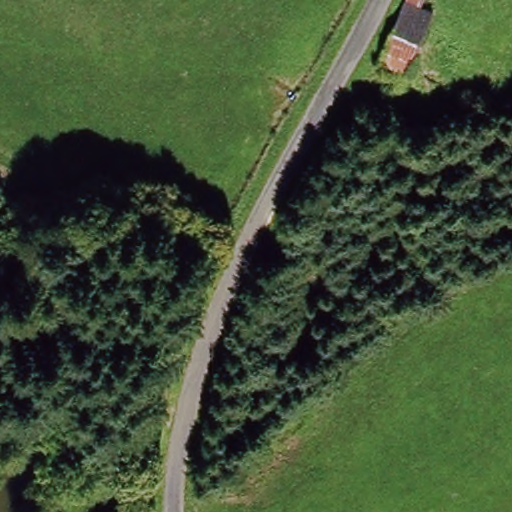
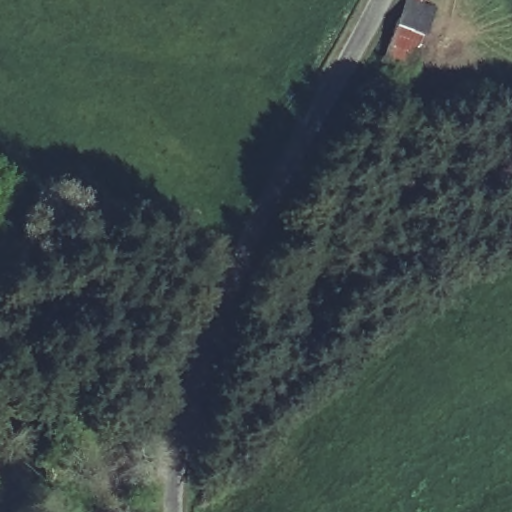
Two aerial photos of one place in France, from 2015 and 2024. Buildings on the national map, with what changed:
unchanged [(410,0),(427,0),(424,8),(434,14),(403,69),(377,56),(410,0)]

